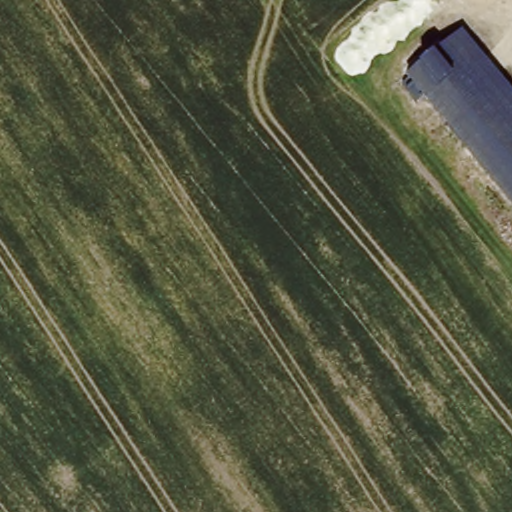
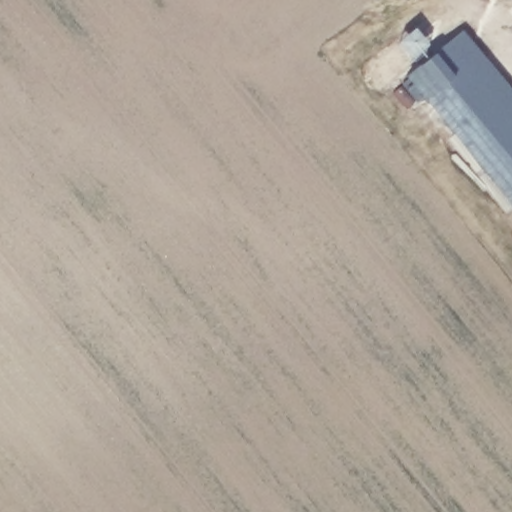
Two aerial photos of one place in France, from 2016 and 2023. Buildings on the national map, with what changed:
unchanged [(426,94),(417,98),(402,81),(445,44),(449,46),(464,34),(512,92),(512,198),(426,94)]

